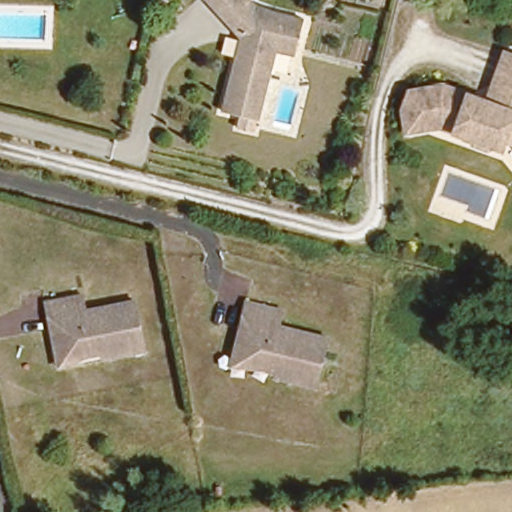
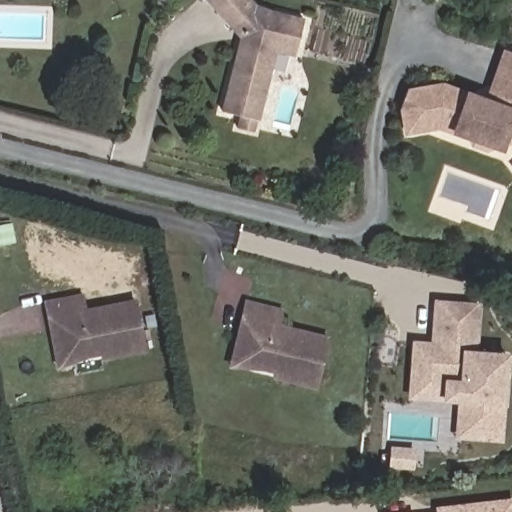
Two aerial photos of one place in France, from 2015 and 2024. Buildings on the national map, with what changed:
unchanged [(300,19),(291,56),(272,52),(254,120),(219,111),(237,38),(210,9),(203,1),(204,0),(248,0),(254,6),(300,19)]
unchanged [(498,146),(490,144),(483,147),(469,142),(466,135),(433,124),(401,130),(395,104),(406,89),(436,83),(483,99),(500,50),(512,54),(512,106),(511,109),(512,109),(512,141),(511,141),(501,137),(498,146)]
unchanged [(86,304),(136,294),(147,345),(105,353),(104,348),(74,354),(62,346),(55,312),(50,313),(47,295),(84,288),(86,304)]
unchanged [(285,304),(281,319),(330,331),(316,382),(275,371),(276,366),(247,359),(240,346),(248,313),(243,311),(247,295),(285,304)]
new [(477,304),(473,354),(506,356),(502,402),(500,440),(470,438),(471,418),(458,417),(460,401),(410,398),(415,344),(432,345),(435,300),(477,304)]
new [(415,448),(414,471),(387,469),(390,446),(415,448)]

